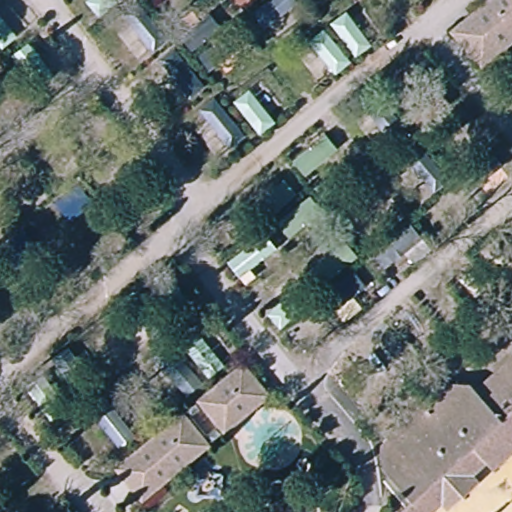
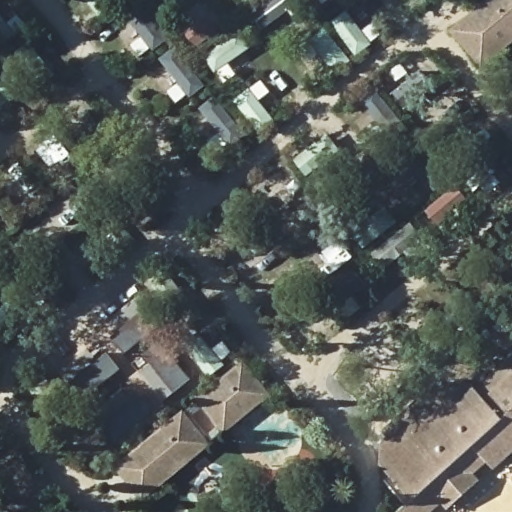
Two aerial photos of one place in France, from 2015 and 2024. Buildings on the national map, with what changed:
unchanged [(473,66),(444,29),(478,0),(512,0),(512,32),(473,66)]
unchanged [(276,395),(231,435),(205,404),(251,366),(276,395)]
unchanged [(381,467),(381,445),(405,425),(399,418),(421,399),(427,405),(449,384),(472,385),(485,400),(512,375),(512,453),(492,471),(486,464),(473,475),(480,483),(449,511),(442,504),(432,512),(400,512),(412,502),(381,467)]
unchanged [(215,439),(149,495),(123,464),(190,409),(215,439)]

